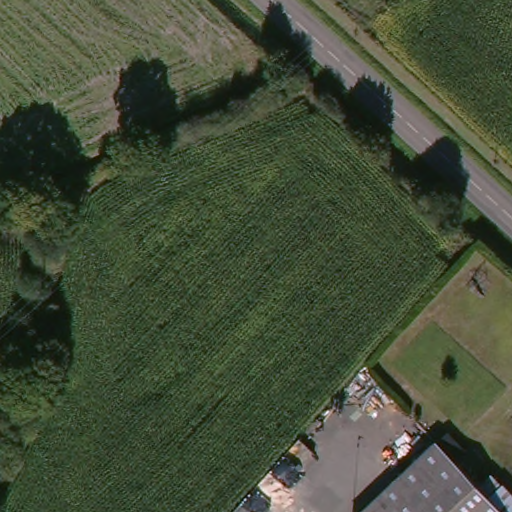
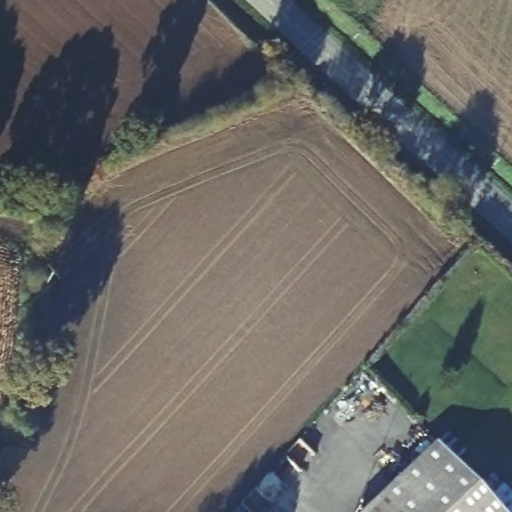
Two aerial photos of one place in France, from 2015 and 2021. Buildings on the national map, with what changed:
unchanged [(444,443),(487,490),(507,512),(365,512),(444,443)]
unchanged [(487,490),(503,477),(512,486),(512,512),(507,512),(487,490)]

